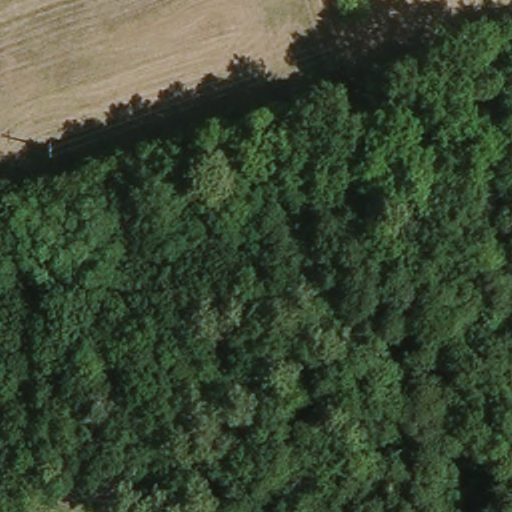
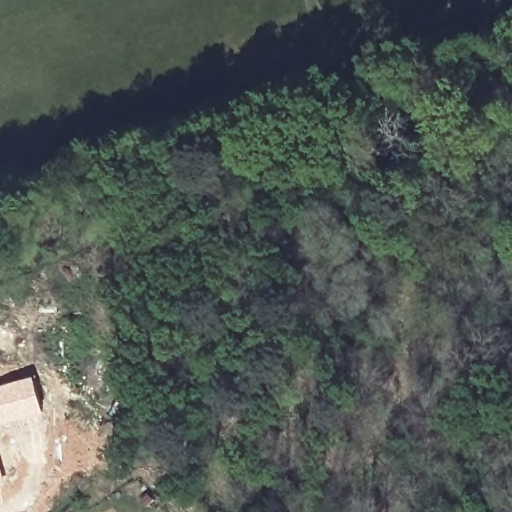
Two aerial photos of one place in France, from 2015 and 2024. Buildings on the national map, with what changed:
new [(44,413),(0,425),(0,386),(34,376),(44,413)]
new [(0,487),(0,457),(7,485),(0,487)]

